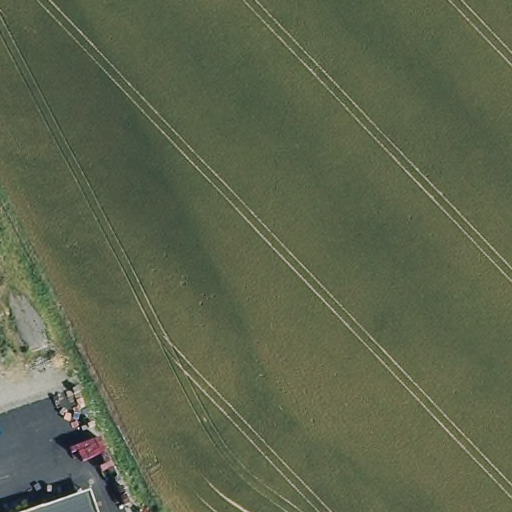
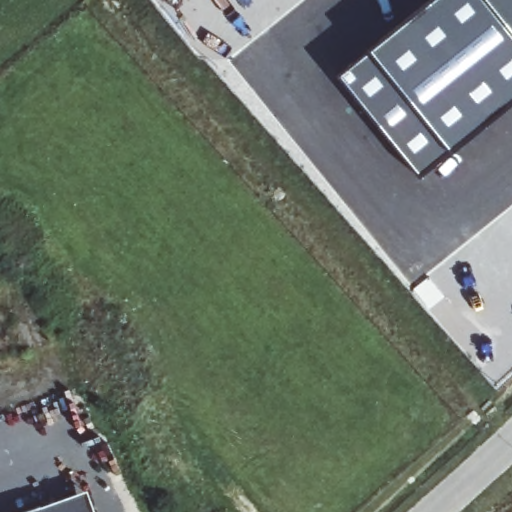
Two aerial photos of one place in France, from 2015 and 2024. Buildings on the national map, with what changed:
new [(371,50),(434,0),(512,0),(512,104),(453,152),(421,175),(341,75),(371,50)]
unchanged [(9,512),(86,485),(96,512),(9,512)]

